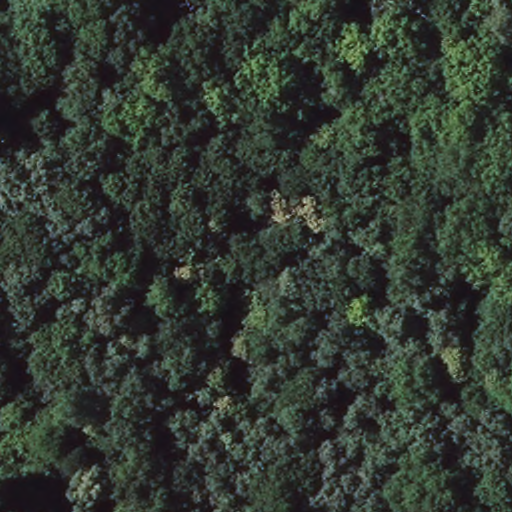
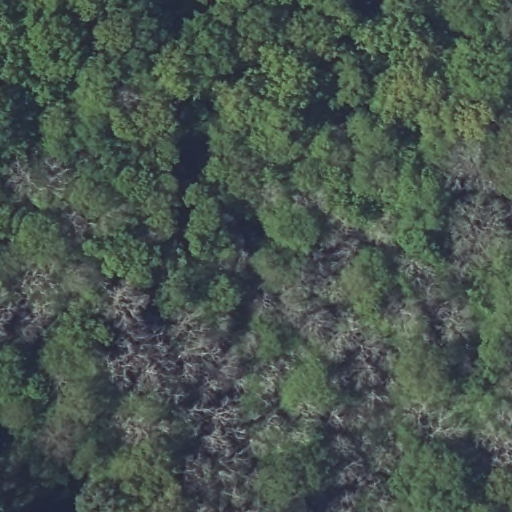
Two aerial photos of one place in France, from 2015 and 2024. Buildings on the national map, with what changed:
[]

